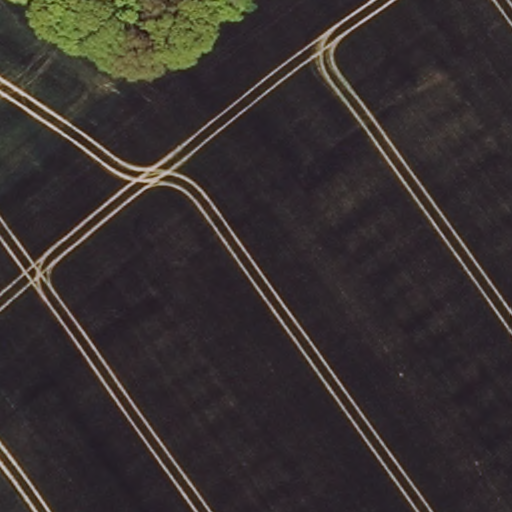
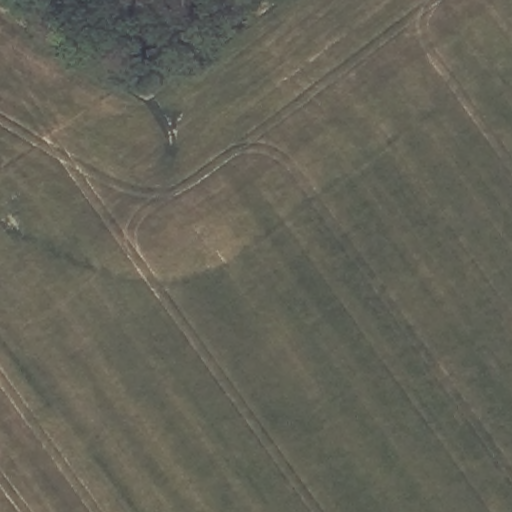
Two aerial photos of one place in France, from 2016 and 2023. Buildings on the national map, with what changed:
[]

